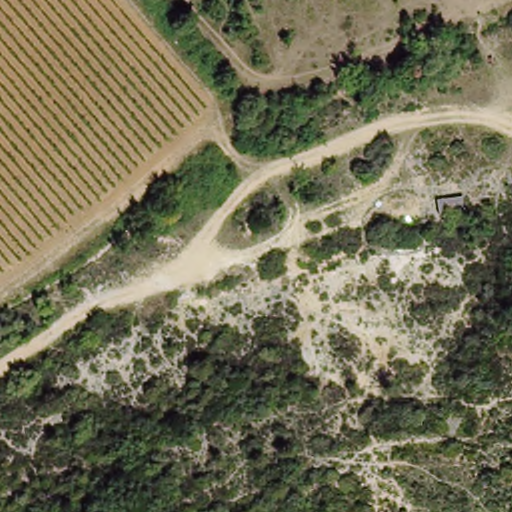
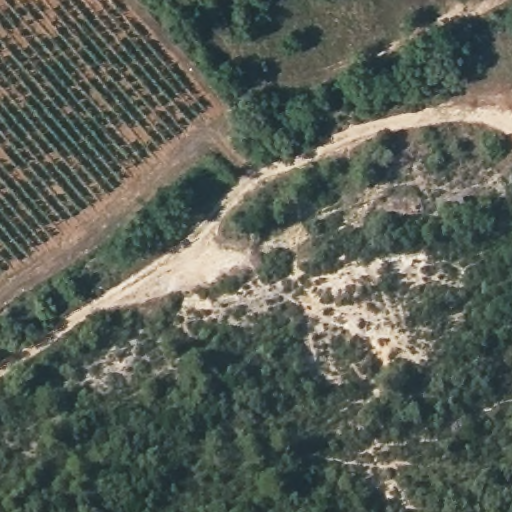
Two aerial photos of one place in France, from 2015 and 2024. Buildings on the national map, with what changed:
unchanged [(467,215),(444,220),(441,204),(464,199),(467,215)]

